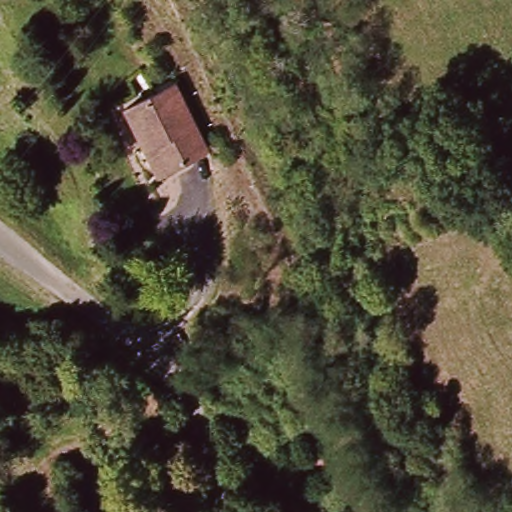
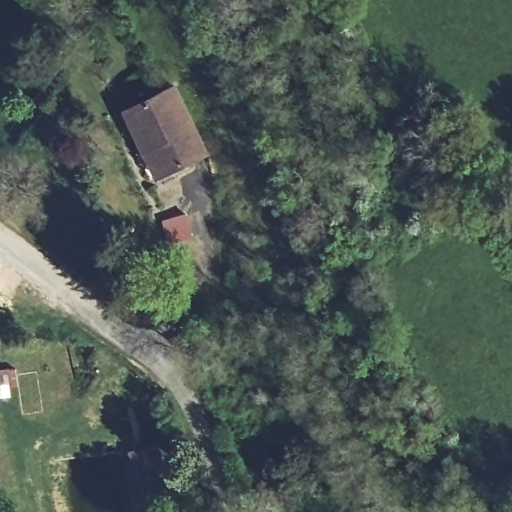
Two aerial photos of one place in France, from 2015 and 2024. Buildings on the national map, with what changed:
unchanged [(222,150),(164,179),(151,152),(160,147),(140,107),(190,84),(222,150)]
unchanged [(321,456),(330,474),(316,478),(309,462),(321,456)]

